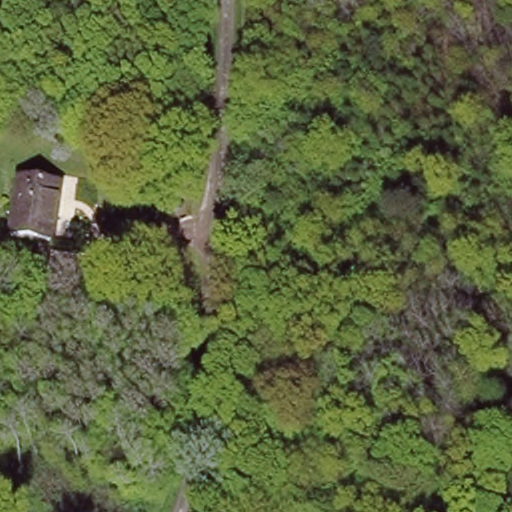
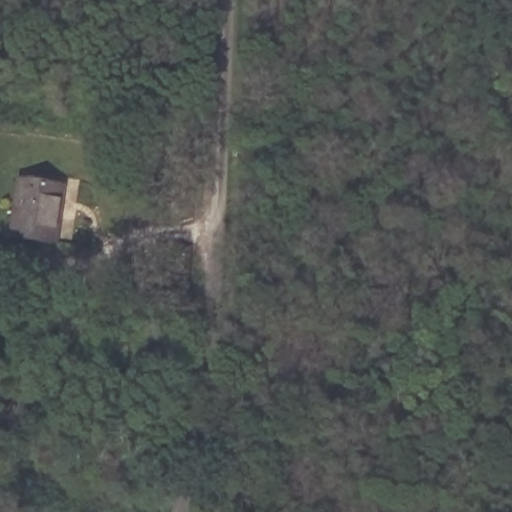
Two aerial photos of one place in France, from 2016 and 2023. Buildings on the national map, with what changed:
unchanged [(65,185),(60,242),(15,239),(24,180),(65,185)]

